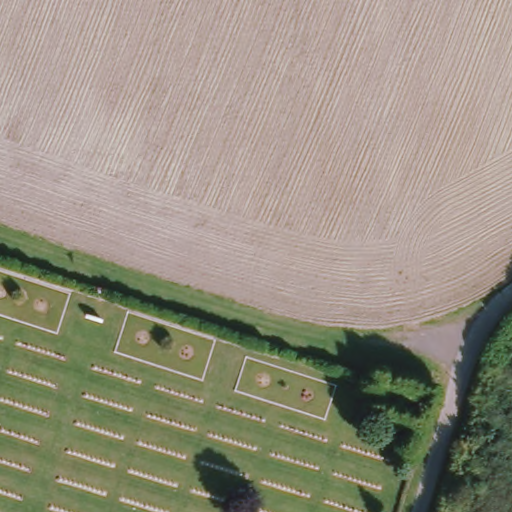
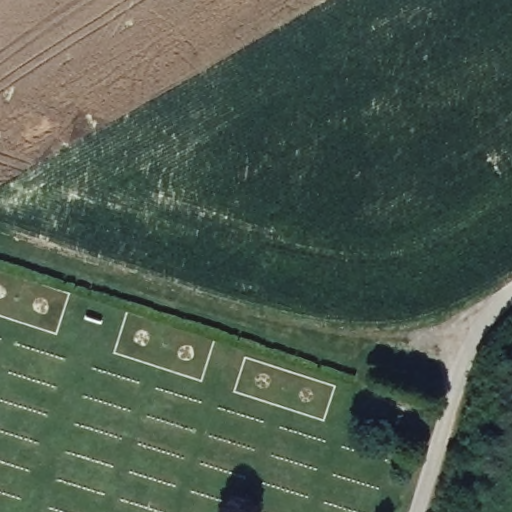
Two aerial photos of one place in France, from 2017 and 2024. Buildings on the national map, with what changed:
unchanged [(377,381),(412,391),(408,406),(372,396),(377,381)]

